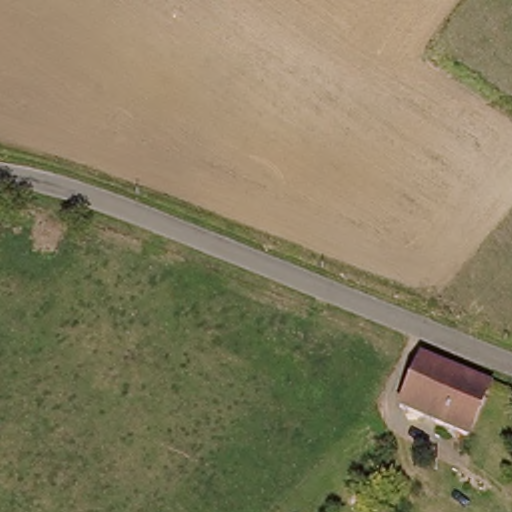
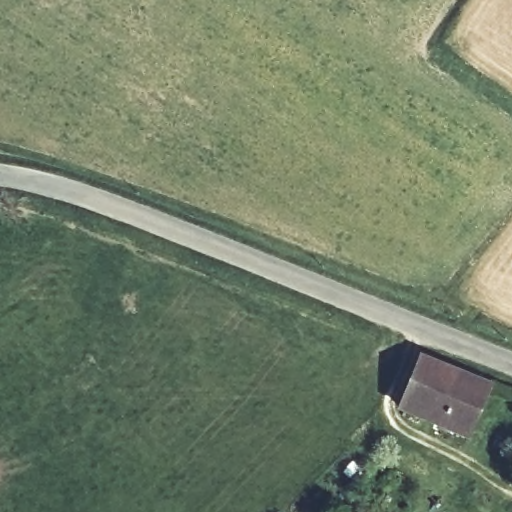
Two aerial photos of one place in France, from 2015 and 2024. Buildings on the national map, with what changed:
unchanged [(492,385),(469,438),(455,432),(400,410),(421,356),(492,385)]
unchanged [(407,504),(401,512),(385,512),(379,508),(388,493),(407,504)]

